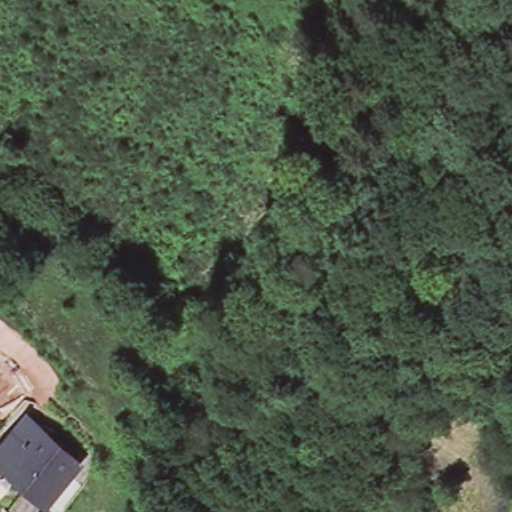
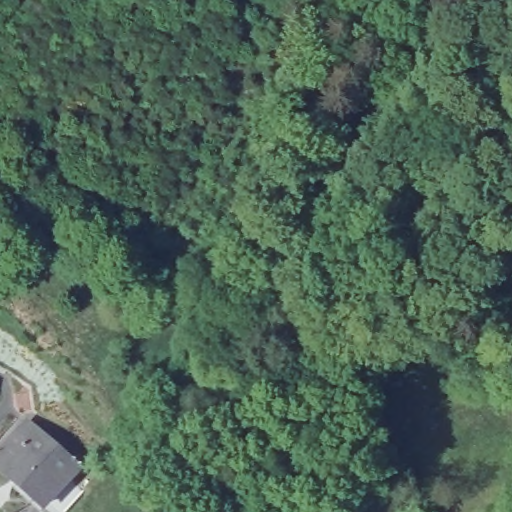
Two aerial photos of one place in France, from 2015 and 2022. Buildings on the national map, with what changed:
unchanged [(0,463),(0,449),(28,418),(79,463),(69,473),(83,486),(60,512),(58,512),(44,500),(23,483),(0,463)]

